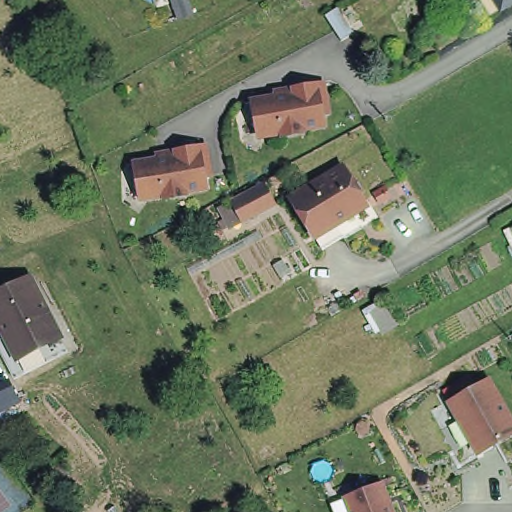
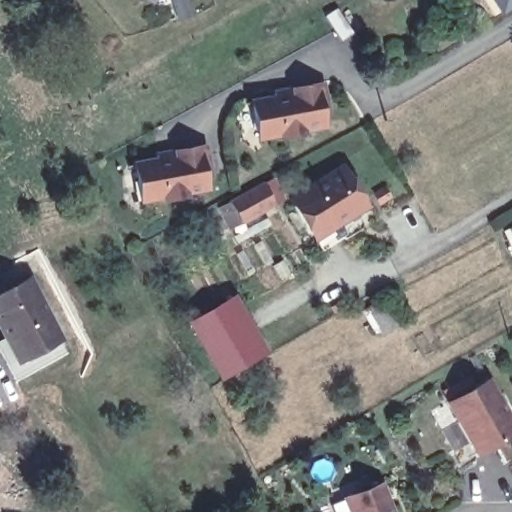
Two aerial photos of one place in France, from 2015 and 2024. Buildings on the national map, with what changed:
unchanged [(495,6),(491,0),(511,0),(496,9),(495,6)]
unchanged [(290,90),(290,85),(323,80),(330,129),(258,141),(251,97),(290,90)]
unchanged [(171,152),(170,147),(204,141),(211,190),(140,203),(132,157),(171,152)]
unchanged [(326,250),(317,235),(291,195),(340,164),(361,196),(365,204),(336,222),(345,237),(326,250)]
unchanged [(247,218),(232,202),(260,176),(275,192),(247,218)]
unchanged [(0,320),(0,293),(31,275),(70,347),(27,370),(17,375),(0,342),(0,340),(8,335),(0,320)]
unchanged [(390,295),(404,323),(376,335),(365,308),(390,295)]
new [(260,355),(221,378),(190,323),(229,301),(260,355)]
unchanged [(512,412),(512,436),(476,455),(446,402),(493,378),(512,412)]
unchanged [(20,385),(30,405),(0,423),(0,397),(20,385)]
unchanged [(385,481),(396,512),(348,512),(342,496),(385,481)]

